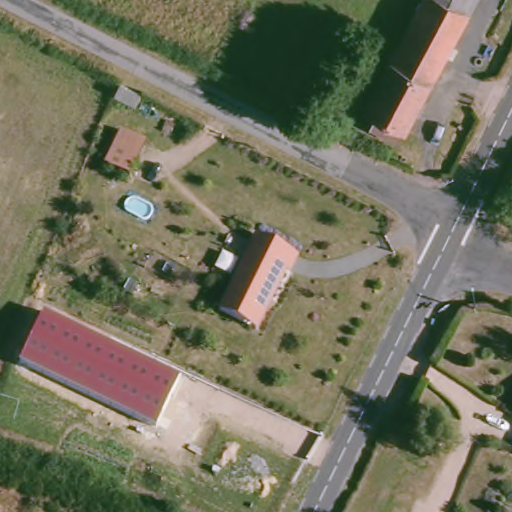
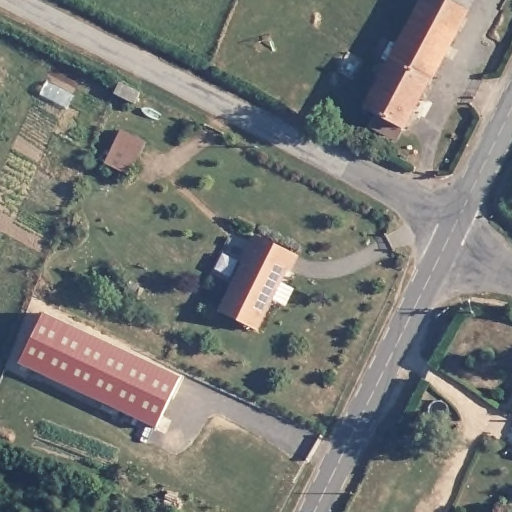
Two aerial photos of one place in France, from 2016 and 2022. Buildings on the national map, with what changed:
unchanged [(364,107),(420,0),(444,0),(466,11),(406,127),(364,107)]
unchanged [(444,0),(472,0),(466,11),(444,0)]
unchanged [(144,95),(138,105),(118,94),(124,84),(144,95)]
unchanged [(149,145),(131,178),(108,165),(125,132),(149,145)]
unchanged [(258,328),(221,309),(259,233),(299,253),(291,269),(289,268),(274,298),(258,328)]
unchanged [(178,377),(156,427),(20,363),(45,313),(178,377)]

